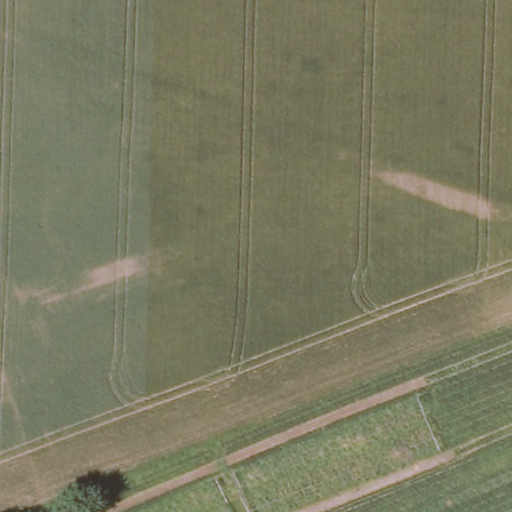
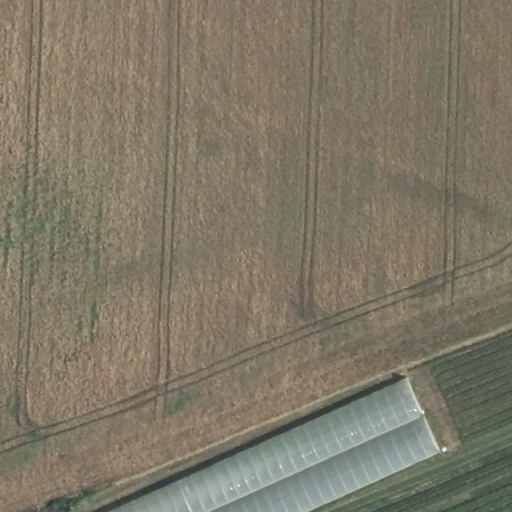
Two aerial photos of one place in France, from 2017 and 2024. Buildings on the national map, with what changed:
new [(441,448),(299,512),(104,512),(408,376),(441,448)]

